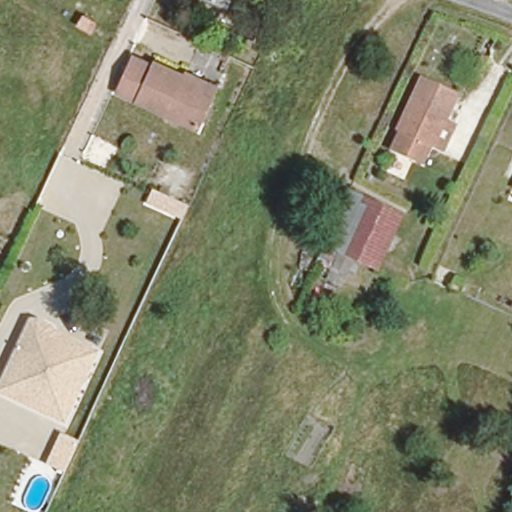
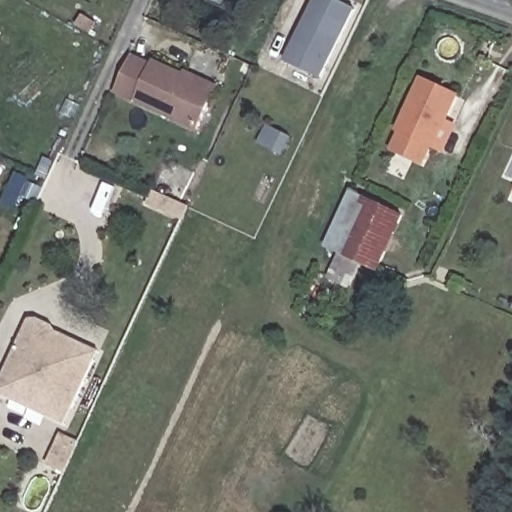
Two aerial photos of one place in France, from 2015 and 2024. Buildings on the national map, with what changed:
unchanged [(208,0),(235,0),(231,10),(208,0)]
new [(335,0),(351,8),(317,79),(283,63),(313,0),(335,0)]
unchanged [(111,99),(127,60),(149,69),(150,65),(182,78),(184,75),(213,88),(211,93),(194,134),(111,99)]
unchanged [(442,125),(450,129),(438,153),(431,149),(395,132),(418,81),(455,98),(442,125)]
new [(167,215),(145,205),(151,192),(186,209),(185,211),(181,220),(167,215)]
unchanged [(403,216),(378,267),(357,257),(336,303),(308,289),(315,275),(329,281),(343,251),(330,244),(354,193),(403,216)]
unchanged [(101,351),(66,425),(0,394),(0,382),(29,319),(37,318),(55,326),(57,332),(101,351)]

